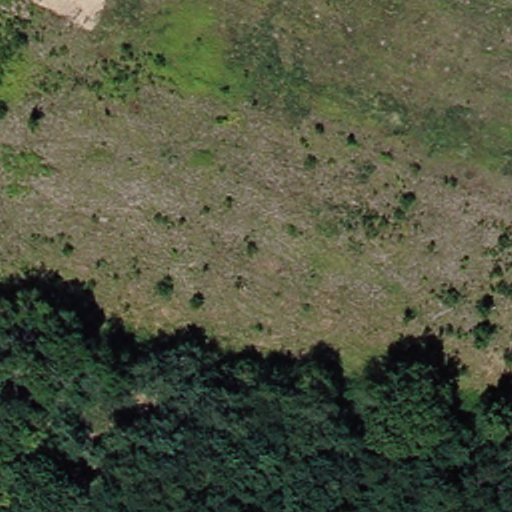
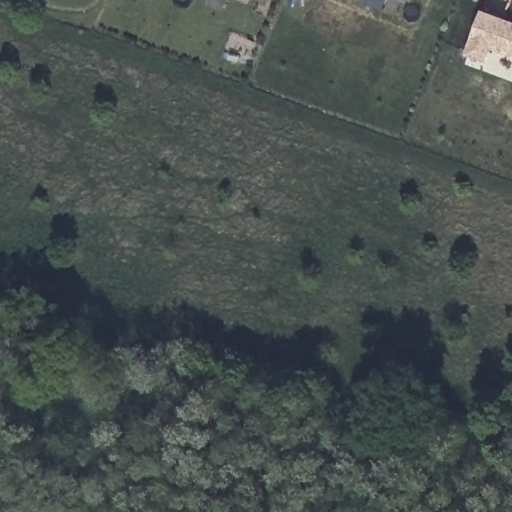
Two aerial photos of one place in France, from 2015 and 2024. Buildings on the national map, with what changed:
new [(398,0),(411,0),(409,5),(398,0)]
new [(483,13),(512,25),(512,59),(487,50),(479,68),(463,61),(483,13)]

